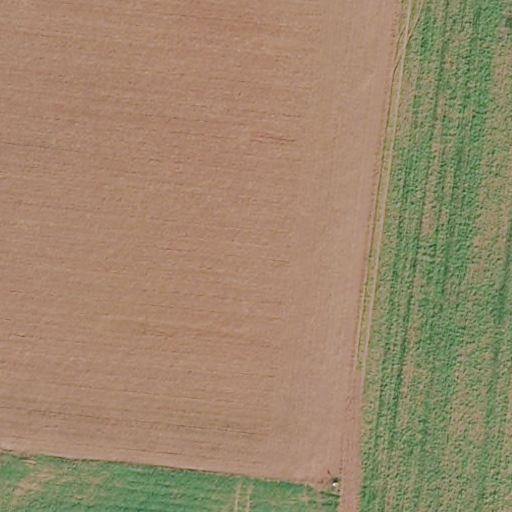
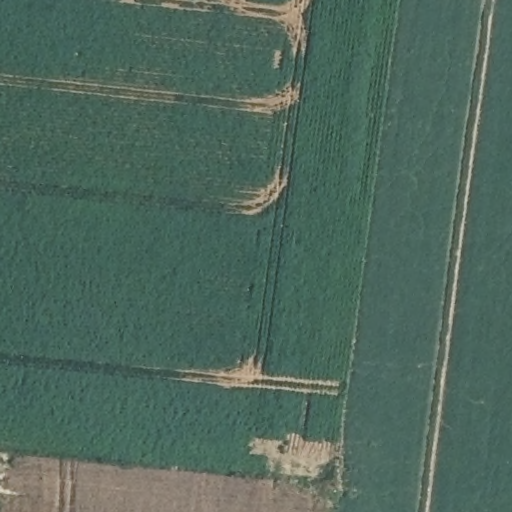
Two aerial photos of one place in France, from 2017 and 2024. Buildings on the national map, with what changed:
[]

